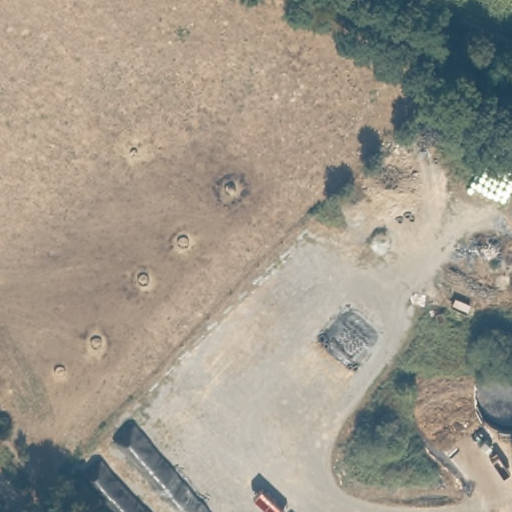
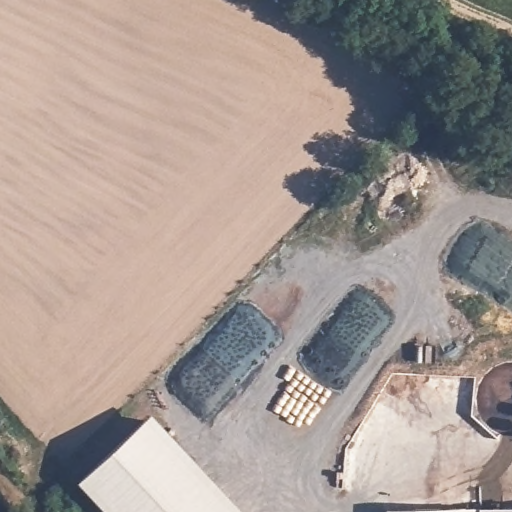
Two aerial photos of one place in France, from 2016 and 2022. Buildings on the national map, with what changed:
new [(77,483),(152,413),(245,512),(104,512),(77,483)]
new [(384,510),(512,508),(512,512),(385,512),(384,510)]

